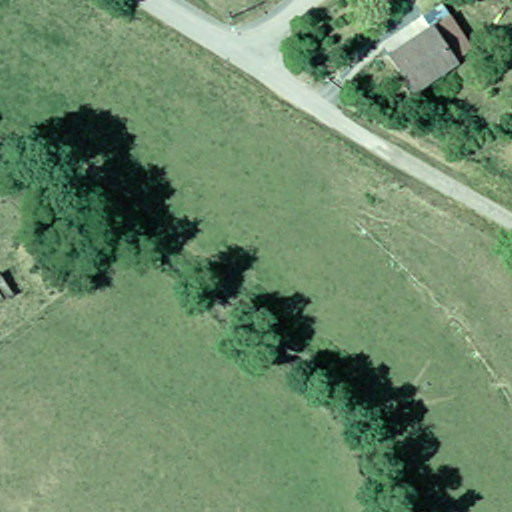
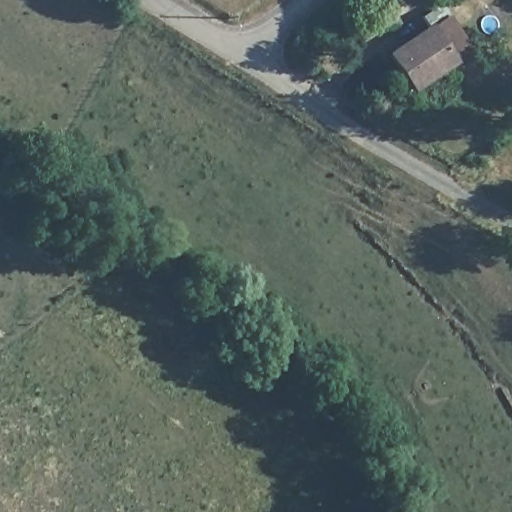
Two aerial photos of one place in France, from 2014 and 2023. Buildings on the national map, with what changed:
unchanged [(412,90),(387,53),(425,26),(422,23),(434,14),(444,27),(432,36),(451,60),(412,90)]

